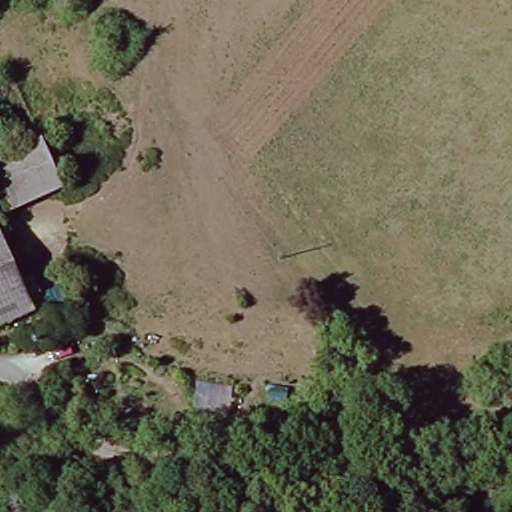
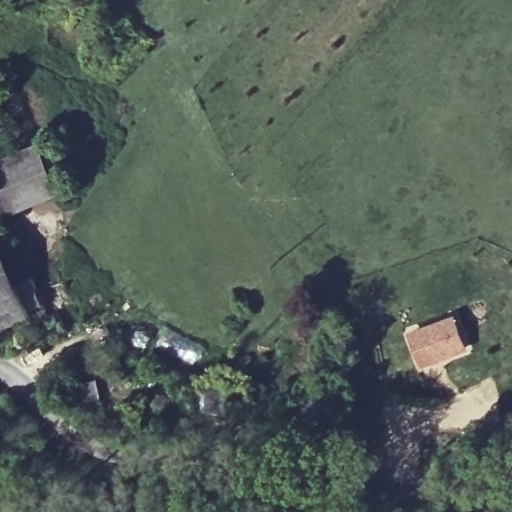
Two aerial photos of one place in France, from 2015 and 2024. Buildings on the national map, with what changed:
unchanged [(50,196),(5,212),(0,199),(0,161),(32,149),(50,196)]
unchanged [(0,292),(0,246),(16,287),(0,292)]
unchanged [(26,283),(30,294),(20,297),(27,317),(0,325),(0,292),(16,287),(26,283)]
new [(406,332),(456,314),(469,349),(421,367),(406,332)]

